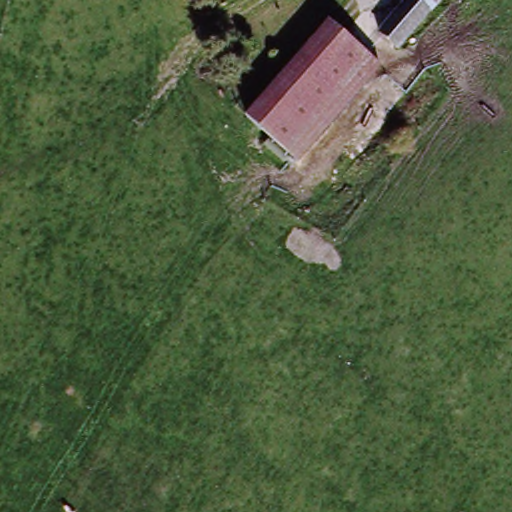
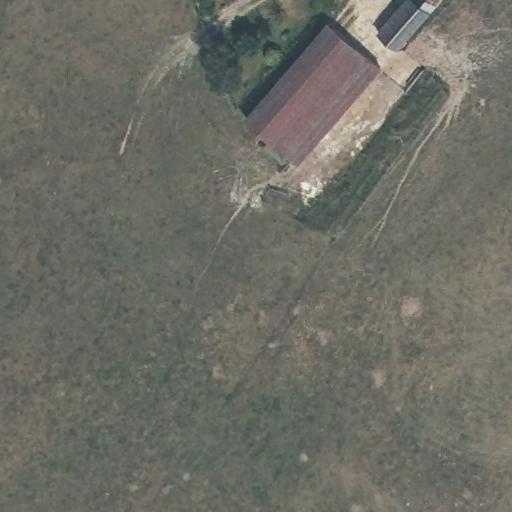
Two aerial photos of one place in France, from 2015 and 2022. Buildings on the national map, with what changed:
unchanged [(401,46),(384,31),(411,0),(442,0),(401,46)]
unchanged [(295,161),(242,115),(327,21),(380,67),(295,161)]

